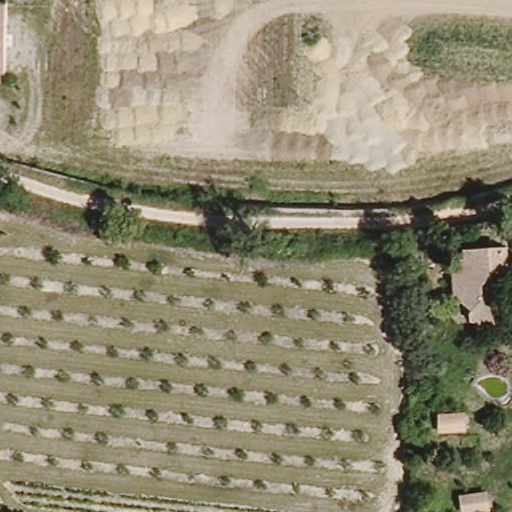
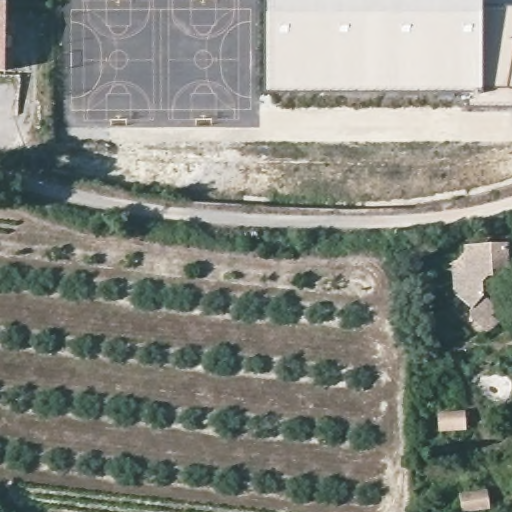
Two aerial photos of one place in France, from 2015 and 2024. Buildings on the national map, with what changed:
new [(483,4),(483,8),(512,7),(512,107),(467,108),(464,90),(266,92),(264,0),(483,0),(483,4)]
unchanged [(0,69),(0,5),(7,5),(0,69)]
unchanged [(482,334),(473,326),(467,321),(466,307),(450,293),(449,263),(464,246),(501,243),(503,268),(493,268),(493,274),(485,283),(486,292),(496,302),(491,309),(485,315),(493,322),(482,334)]
unchanged [(460,414),(461,428),(434,430),(433,416),(460,414)]
unchanged [(457,492),(483,488),(485,502),(459,506),(457,492)]

